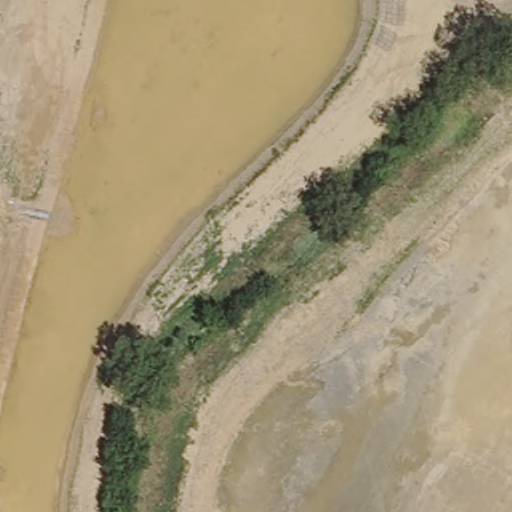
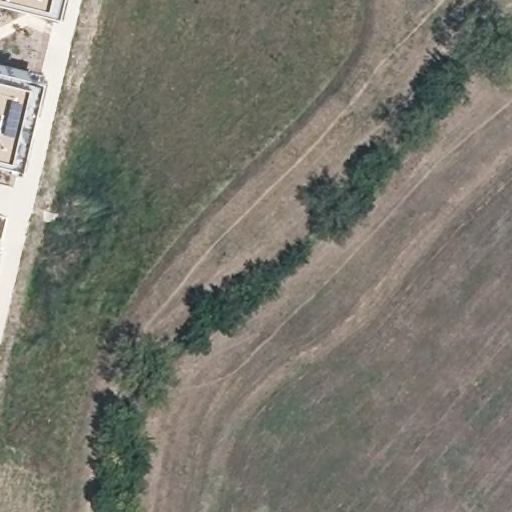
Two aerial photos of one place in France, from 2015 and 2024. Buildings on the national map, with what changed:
new [(55,13),(12,0),(58,0),(55,13)]
new [(26,139),(18,164),(0,158),(0,65),(40,75),(26,139)]

